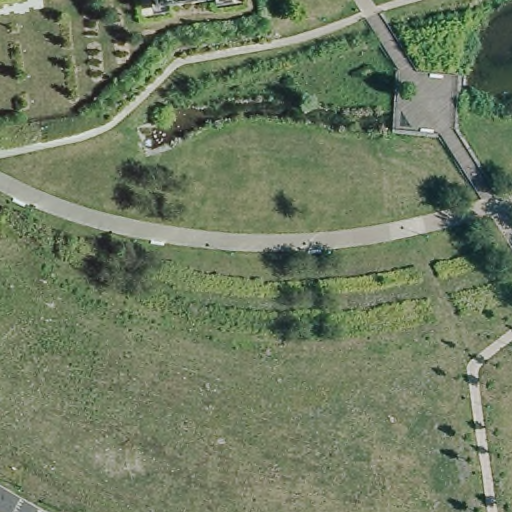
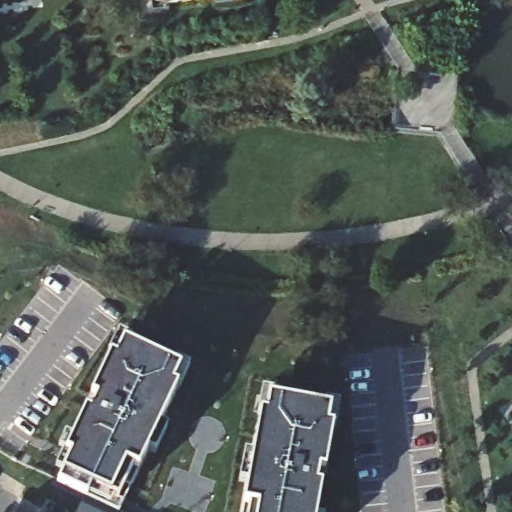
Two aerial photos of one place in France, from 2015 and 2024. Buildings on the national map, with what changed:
unchanged [(155,0),(196,0),(156,6),(155,0)]
new [(58,480),(63,473),(55,466),(117,330),(186,366),(115,509),(58,480)]
new [(247,478),(236,476),(243,449),(254,452),(259,410),(258,410),(262,386),(278,391),(277,395),(323,405),(326,398),(341,401),(338,427),(331,426),(318,512),(242,512),(247,478)]

